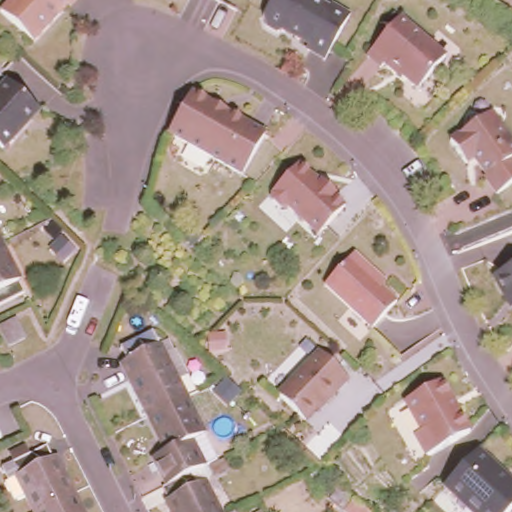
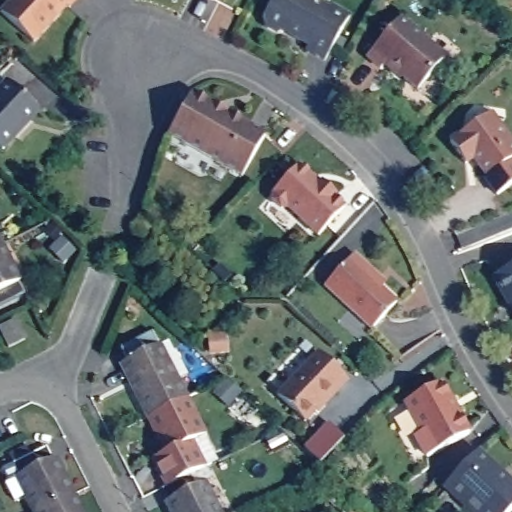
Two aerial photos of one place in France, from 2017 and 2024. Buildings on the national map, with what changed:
unchanged [(79,0),(69,11),(67,10),(33,46),(0,16),(0,14),(13,0),(79,0)]
unchanged [(330,10),(348,20),(323,64),(305,55),(308,50),(293,41),(292,39),(285,35),(276,37),(263,30),(260,22),(272,0),(301,0),(328,15),(330,10)]
unchanged [(444,58),(416,90),(384,64),(379,70),(365,57),(397,19),(444,58)]
unchanged [(38,115),(21,134),(19,132),(13,139),(14,140),(1,154),(0,153),(0,92),(6,85),(38,115)]
unchanged [(244,128),(243,130),(263,141),(239,182),(166,139),(190,97),(244,128)]
unchanged [(508,142),(507,144),(512,150),(512,157),(510,160),(512,162),(512,184),(498,195),(484,180),(485,179),(476,168),(478,166),(473,160),(463,169),(446,149),(461,135),(464,122),(492,122),(508,142)]
unchanged [(318,190),(320,187),(334,200),(332,202),(343,212),(317,240),(287,212),(280,212),(270,204),(271,197),(297,170),(318,190)]
unchanged [(5,244),(0,246),(0,235),(5,244)]
unchanged [(5,244),(29,293),(0,307),(0,246),(5,244)]
unchanged [(378,277),(373,281),(396,302),(371,329),(323,285),(353,254),(378,277)]
unchanged [(504,303),(493,282),(512,271),(512,309),(508,301),(504,303)]
unchanged [(16,321),(25,339),(8,347),(0,332),(0,328),(16,321)]
unchanged [(121,364),(127,361),(121,348),(152,332),(159,345),(168,341),(173,350),(175,349),(187,375),(176,380),(185,397),(148,416),(121,364)]
unchanged [(347,385),(324,408),(321,406),(302,425),(275,398),(317,355),(347,385)]
unchanged [(444,388),(469,441),(424,462),(414,440),(421,436),(406,406),(444,388)]
unchanged [(185,397),(218,460),(206,466),(167,486),(154,460),(167,454),(148,416),(185,397)]
unchanged [(512,512),(475,512),(447,485),(482,449),(512,478),(512,512)]
unchanged [(37,505),(25,510),(16,492),(18,491),(12,478),(55,457),(62,470),(63,470),(82,505),(69,512),(40,512),(37,505)]
unchanged [(206,466),(213,478),(204,482),(218,512),(172,512),(167,501),(168,500),(162,488),(167,486),(206,466)]
unchanged [(339,489),(365,512),(344,512),(330,500),(339,489)]
unchanged [(82,505),(85,512),(69,512),(82,505)]

